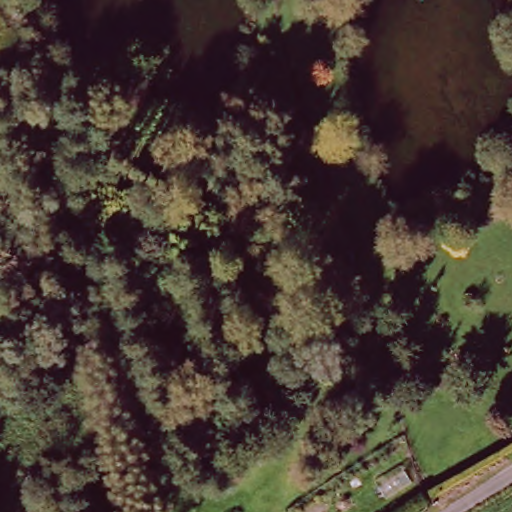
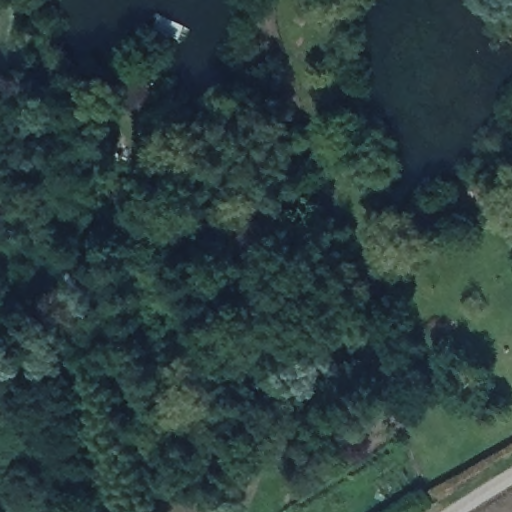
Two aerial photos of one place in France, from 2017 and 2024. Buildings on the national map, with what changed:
unchanged [(121,89),(144,79),(154,101),(128,110),(121,89)]

